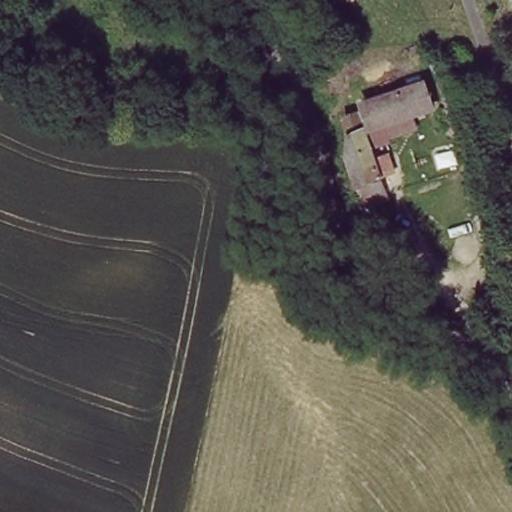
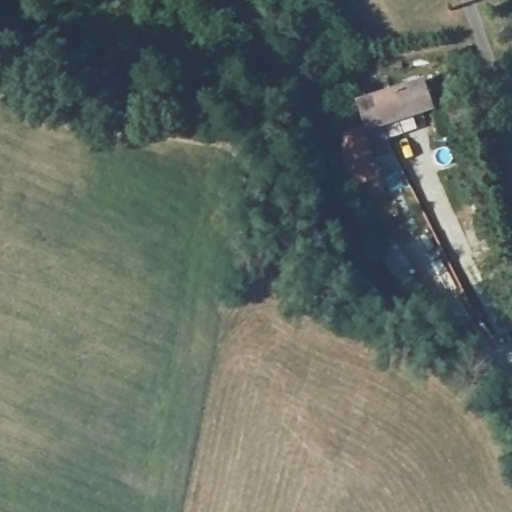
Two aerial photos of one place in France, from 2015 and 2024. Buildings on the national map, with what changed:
unchanged [(438,109),(412,118),(370,132),(362,107),(430,83),(438,109)]
unchanged [(412,118),(417,135),(384,147),(395,177),(379,183),(375,171),(363,135),(370,132),(412,118)]
unchanged [(341,130),(360,125),(363,135),(375,171),(352,179),(342,146),(341,130)]

